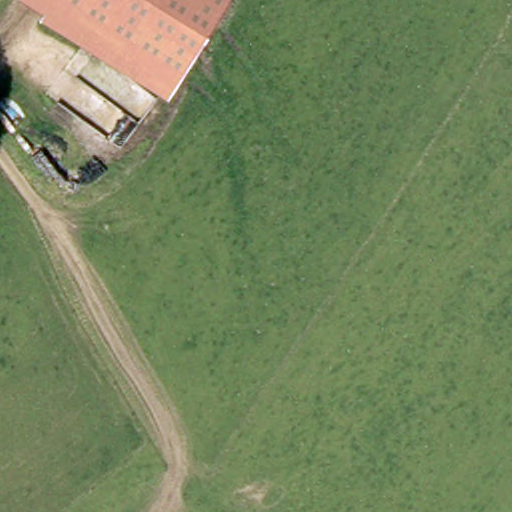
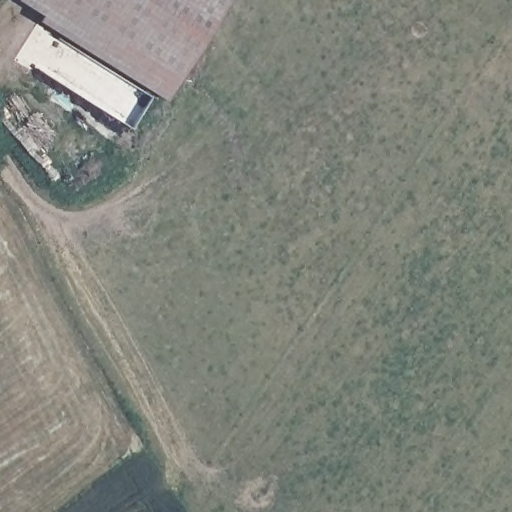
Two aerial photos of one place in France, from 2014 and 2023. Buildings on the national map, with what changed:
unchanged [(23,0),(228,0),(163,97),(23,0)]

